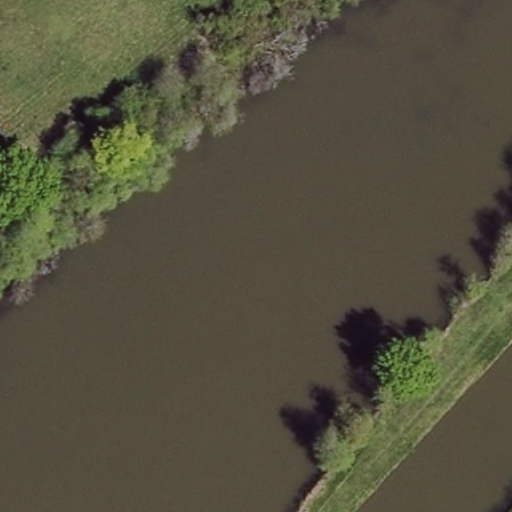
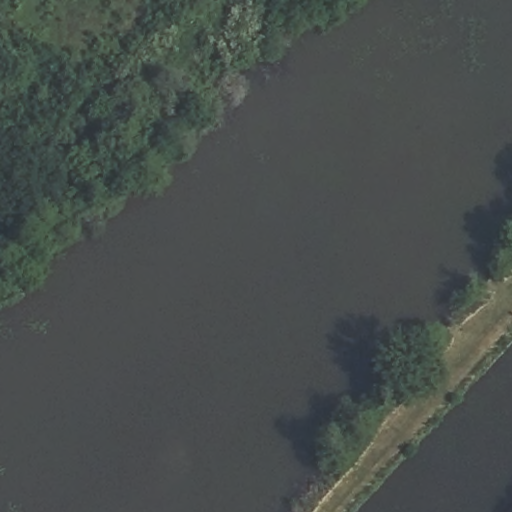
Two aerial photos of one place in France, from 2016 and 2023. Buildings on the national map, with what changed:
[]

